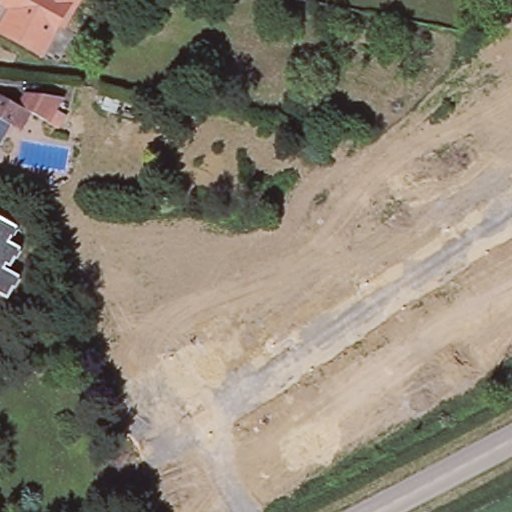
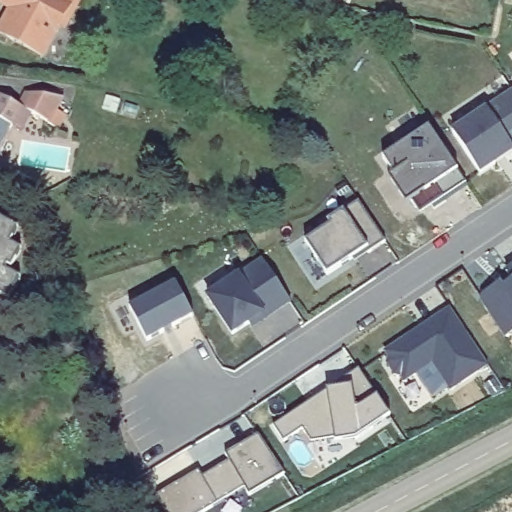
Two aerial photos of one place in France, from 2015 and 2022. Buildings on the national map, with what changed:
unchanged [(55,57),(39,47),(0,26),(0,15),(7,2),(4,0),(68,0),(72,2),(62,21),(73,27),(55,57)]
unchanged [(72,2),(68,0),(73,0),(72,2)]
new [(487,108),(512,91),(512,154),(480,174),(452,129),(487,108)]
unchanged [(22,107),(30,94),(65,97),(58,109),(67,114),(59,127),(50,122),(34,113),(24,131),(15,127),(0,119),(0,95),(22,107)]
new [(410,200),(407,202),(390,178),(395,175),(383,158),(402,146),(397,140),(426,120),(430,127),(459,170),(467,184),(419,214),(410,200)]
new [(305,241),(331,225),(327,220),(342,211),(358,201),(383,239),(367,249),(327,275),(305,241)]
unchanged [(20,224),(12,238),(24,245),(12,265),(24,272),(12,292),(3,287),(0,286),(0,212),(20,224)]
new [(245,325),(231,335),(206,297),(262,260),(289,302),(264,319),(247,330),(245,325)]
new [(510,278),(505,270),(512,266),(512,331),(504,337),(477,300),(502,283),(510,278)]
unchanged [(0,293),(0,286),(3,287),(0,293)]
new [(400,375),(392,376),(384,364),(387,357),(382,350),(451,307),(487,365),(450,388),(432,400),(417,376),(405,382),(400,375)]
new [(273,427),(326,392),(359,369),(377,397),(390,416),(355,438),(335,441),(311,442),(303,430),(282,441),(273,427)]
new [(200,471),(204,476),(230,461),(225,455),(258,435),(283,476),(250,494),(245,486),(198,512),(169,512),(159,495),(200,471)]

